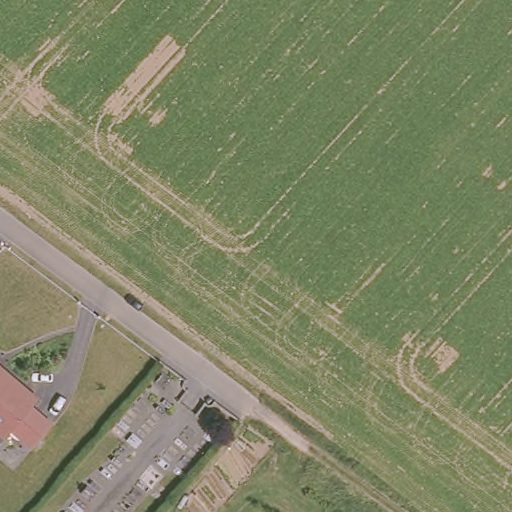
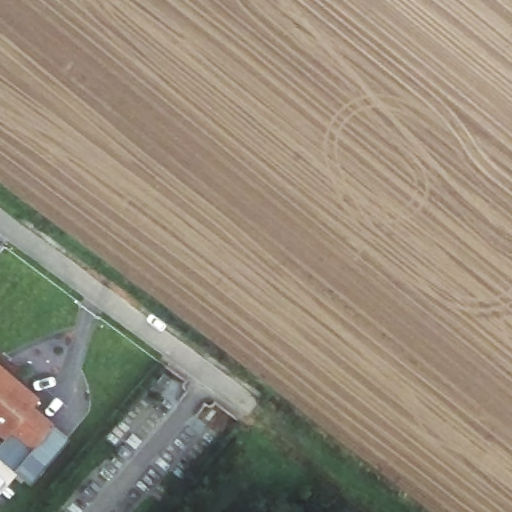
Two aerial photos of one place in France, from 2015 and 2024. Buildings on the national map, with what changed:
unchanged [(38,404),(32,412),(53,429),(33,453),(13,435),(6,442),(0,436),(0,370),(38,404)]

